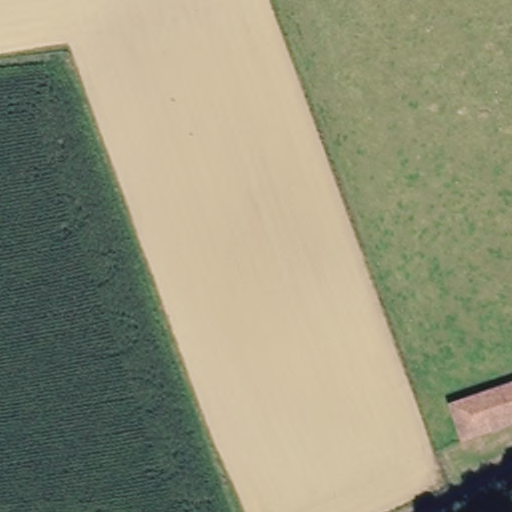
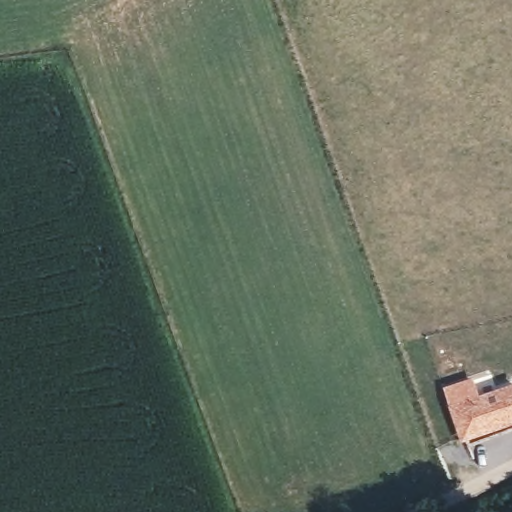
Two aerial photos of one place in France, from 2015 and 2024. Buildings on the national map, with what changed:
unchanged [(455,405),(512,392),(512,423),(461,435),(455,405)]

